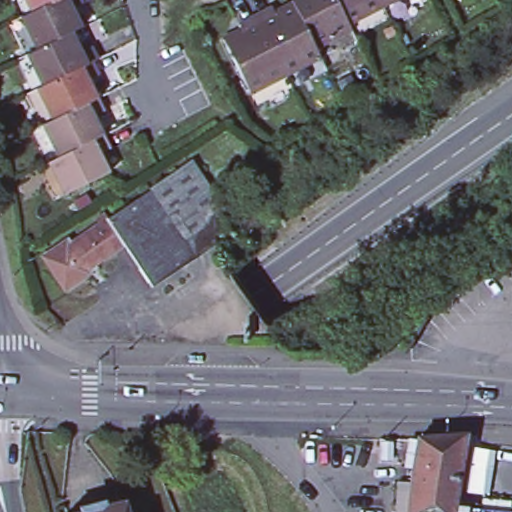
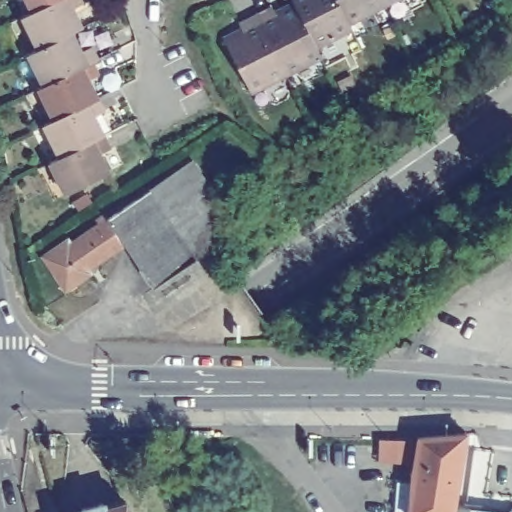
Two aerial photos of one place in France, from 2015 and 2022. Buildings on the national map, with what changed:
unchanged [(25,14),(35,9),(53,0),(80,0),(73,3),(85,25),(75,29),(41,46),(25,14)]
unchanged [(35,9),(30,0),(53,0),(35,9)]
unchanged [(317,50),(295,5),(293,0),(336,0),(348,25),(352,32),(317,50)]
unchanged [(383,7),(348,25),(336,0),(379,0),(383,7)]
unchanged [(383,7),(379,0),(396,0),(383,7)]
unchanged [(274,9),(277,14),(295,5),(317,50),(321,58),(286,76),(258,17),(274,9)]
unchanged [(258,17),(286,76),(251,93),(225,40),(245,31),(242,26),(258,17)]
unchanged [(95,59),(48,82),(31,51),(41,46),(75,29),(83,46),(92,42),(100,57),(95,59)]
unchanged [(37,87),(48,82),(95,59),(100,70),(90,75),(100,95),(53,118),(37,87)]
unchanged [(62,153),(46,121),(53,118),(100,95),(105,107),(97,112),(107,132),(62,153)]
unchanged [(112,144),(102,149),(112,169),(68,192),(52,159),(62,153),(107,132),(112,144)]
unchanged [(194,161),(218,198),(220,212),(184,235),(153,188),(194,161)]
unchanged [(153,188),(184,235),(198,256),(155,285),(127,241),(110,216),(153,188)]
unchanged [(69,237),(71,241),(102,221),(100,217),(108,212),(110,216),(127,241),(89,266),(92,271),(67,287),(45,254),(69,237)]
unchanged [(511,511),(512,507),(512,512),(418,512),(418,511),(411,512),(405,512),(415,434),(470,431),(455,503),(511,511)]
unchanged [(80,505),(106,497),(108,503),(128,499),(130,512),(71,512),(83,510),(80,505)]

